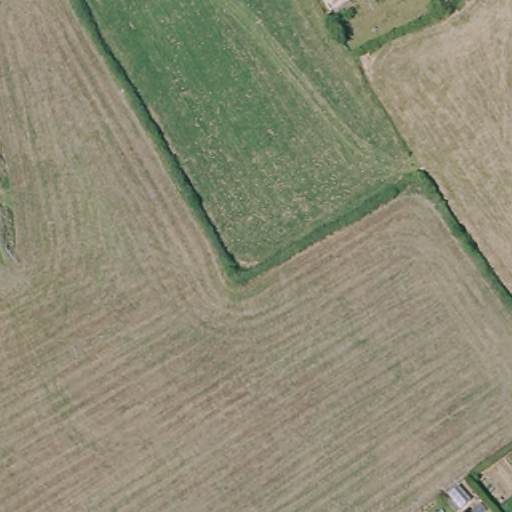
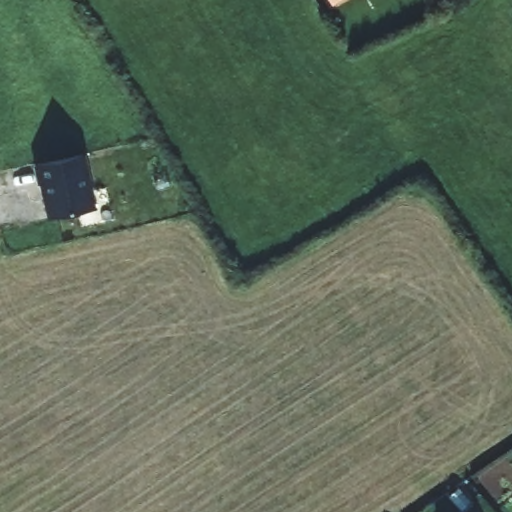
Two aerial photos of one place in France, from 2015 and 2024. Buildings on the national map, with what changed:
unchanged [(338,5),(335,0),(345,0),(338,5)]
new [(85,153),(97,206),(48,219),(35,165),(85,153)]

